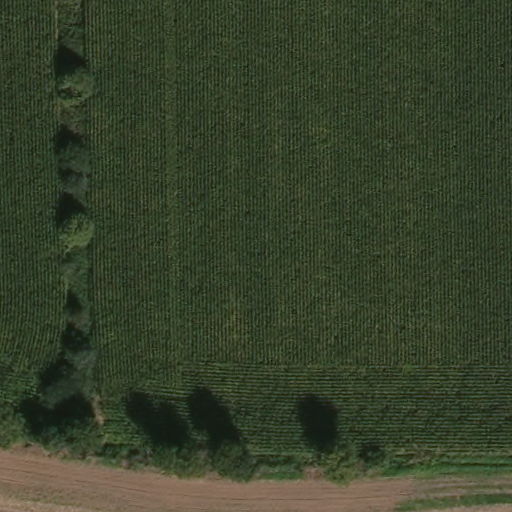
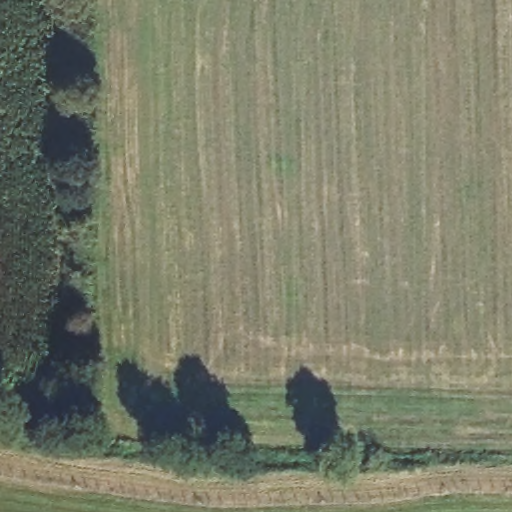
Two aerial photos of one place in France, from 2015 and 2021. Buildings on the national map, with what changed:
[]

